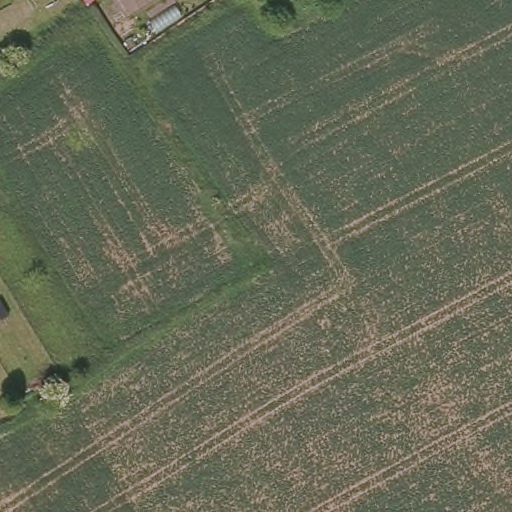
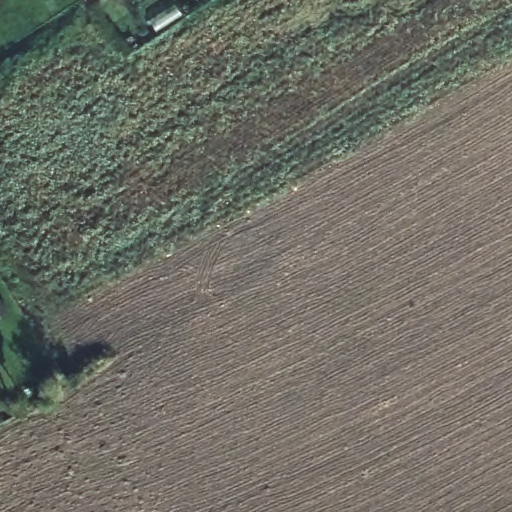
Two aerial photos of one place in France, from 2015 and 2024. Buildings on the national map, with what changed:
unchanged [(89,1),(85,4),(82,0),(92,0),(89,1)]

